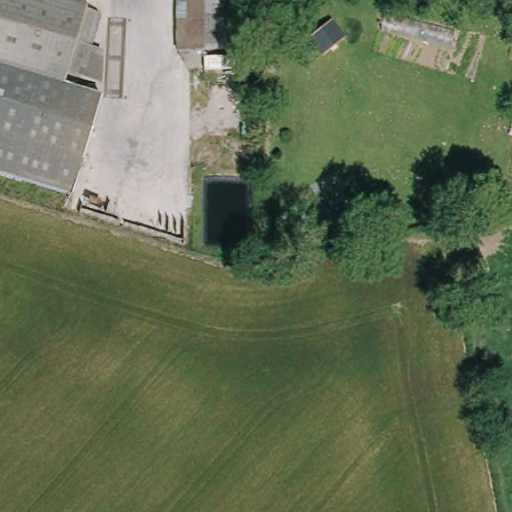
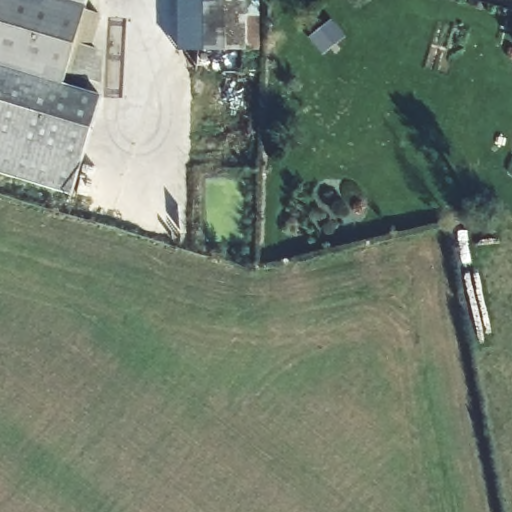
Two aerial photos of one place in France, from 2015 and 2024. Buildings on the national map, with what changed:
unchanged [(102,9),(93,41),(105,45),(110,51),(103,78),(85,73),(69,69),(66,80),(0,62),(0,0),(79,0),(87,2),(102,9)]
unchanged [(79,0),(87,0),(87,2),(79,0)]
unchanged [(180,51),(178,0),(259,0),(259,51),(247,52),(205,51),(180,51)]
unchanged [(105,90),(86,159),(77,190),(14,173),(11,172),(0,169),(0,62),(66,80),(105,90)]

